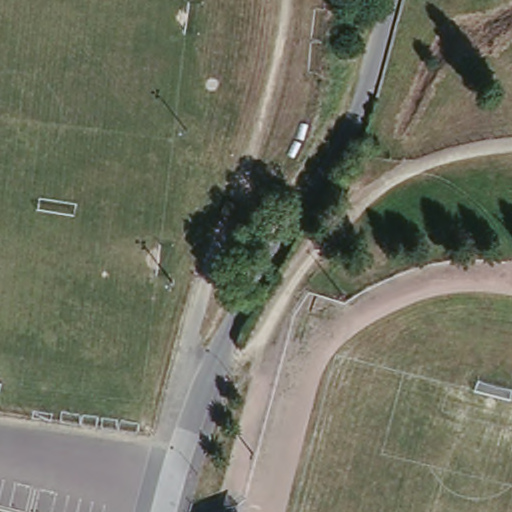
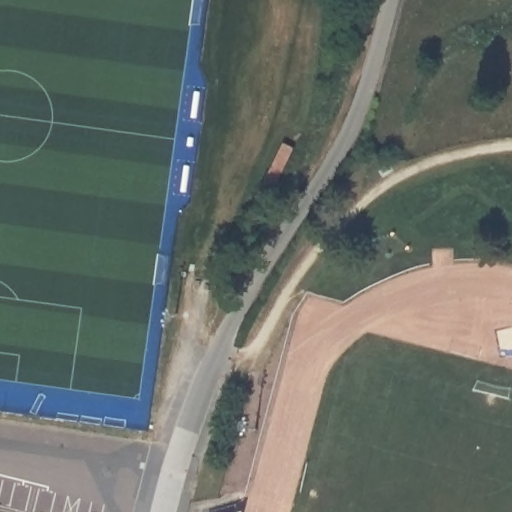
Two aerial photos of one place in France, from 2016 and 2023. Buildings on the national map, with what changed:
unchanged [(243,501),(240,512),(214,512),(214,509),(243,501)]

